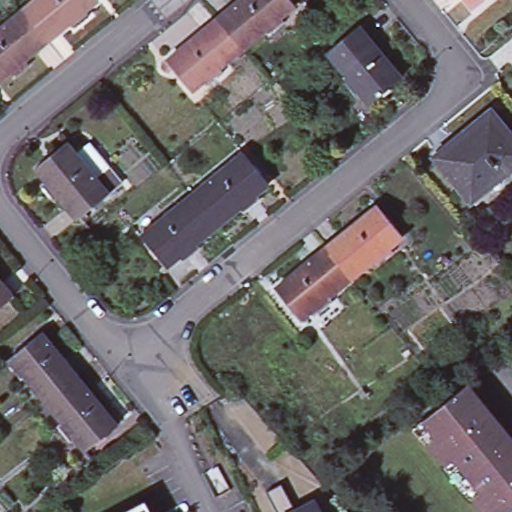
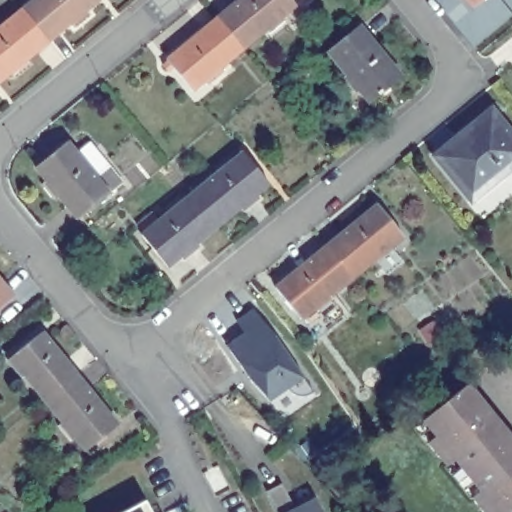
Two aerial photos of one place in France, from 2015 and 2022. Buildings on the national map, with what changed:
unchanged [(21,11),(35,0),(98,0),(99,2),(84,14),(88,19),(72,31),(68,26),(48,44),(21,11)]
unchanged [(235,0),(289,0),(293,5),(277,17),(281,22),(266,34),(263,28),(240,49),(214,17),(235,0)]
unchanged [(459,2),(457,0),(461,0),(459,2)]
unchanged [(474,11),(466,0),(488,0),(474,11)]
unchanged [(26,60),(30,66),(13,78),(10,74),(0,81),(0,28),(21,11),(48,44),(26,60)]
unchanged [(240,49),(217,66),(221,72),(206,84),(201,79),(187,90),(163,59),(214,17),(240,49)]
unchanged [(353,26),(395,76),(365,102),(354,89),(347,94),(333,77),(339,71),(323,52),(353,26)]
unchanged [(512,138),(512,174),(474,204),(439,161),(494,116),(512,138)]
unchanged [(55,194),(49,198),(36,181),(41,177),(30,164),(62,138),(105,191),(74,217),(55,194)]
unchanged [(243,155),(269,186),(256,197),(261,202),(244,215),(240,209),(218,227),(193,195),(243,155)]
unchanged [(218,227),(196,245),(201,251),(184,263),(180,257),(166,268),(141,237),(193,195),(218,227)]
unchanged [(323,247),(374,206),(400,237),(388,247),(392,253),(375,267),(371,262),(350,279),(323,247)]
unchanged [(326,298),(331,303),(316,316),(311,310),(296,322),(271,290),(323,247),(350,279),(326,298)]
unchanged [(8,295),(0,301),(0,285),(8,295)]
new [(245,336),(236,325),(252,311),(275,338),(310,395),(302,399),(295,399),(288,395),(285,391),(284,389),(267,403),(248,382),(226,348),(245,336)]
unchanged [(8,363),(42,337),(76,379),(43,406),(8,363)]
unchanged [(110,422),(77,447),(43,406),(76,379),(110,422)]
unchanged [(423,425),(469,387),(486,407),(468,417),(436,441),(423,425)]
unchanged [(481,496),(473,486),(468,480),(454,464),(447,471),(428,448),(436,442),(436,441),(468,417),(486,407),(488,410),(497,422),(512,440),(512,512),(480,512),(473,502),(481,496)]
unchanged [(295,511),(315,500),(321,512),(276,512),(266,493),(281,485),(295,511)]
unchanged [(155,512),(129,512),(149,502),(155,512)]

